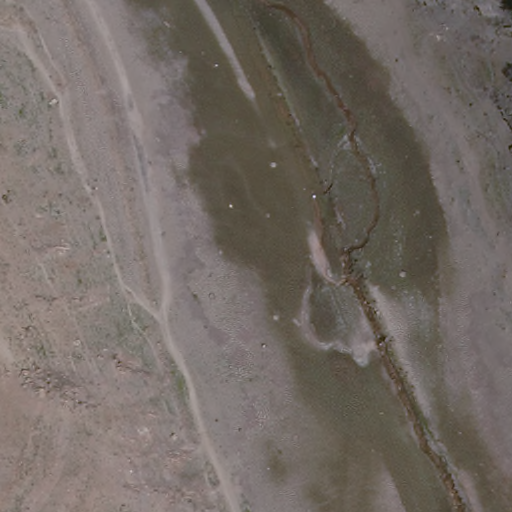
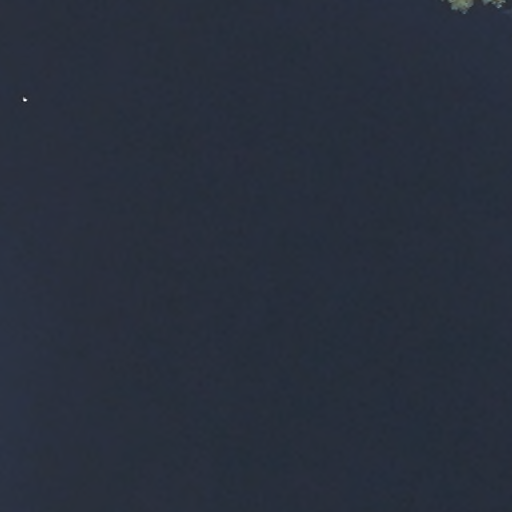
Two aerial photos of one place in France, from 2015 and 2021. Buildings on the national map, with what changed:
[]

